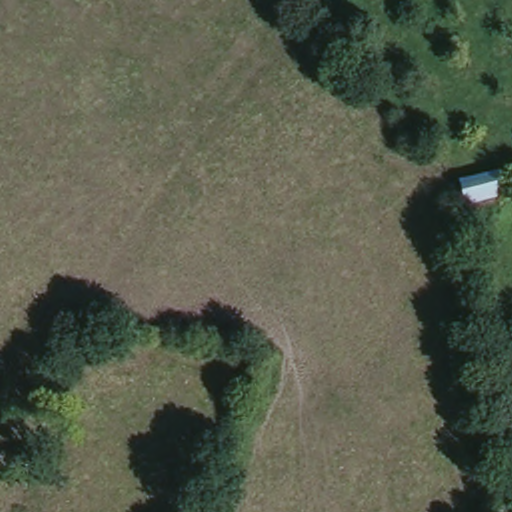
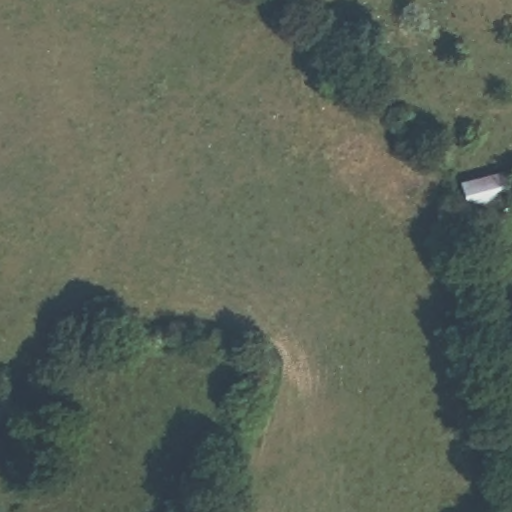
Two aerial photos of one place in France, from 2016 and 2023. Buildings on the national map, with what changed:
unchanged [(464,190),(463,177),(505,170),(508,195),(467,204),(466,211),(457,213),(454,192),(464,190)]

